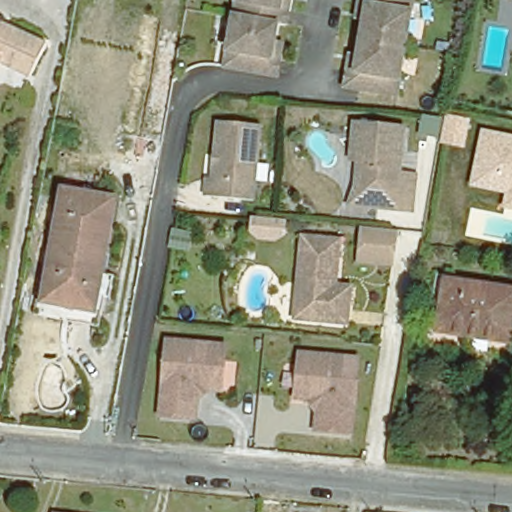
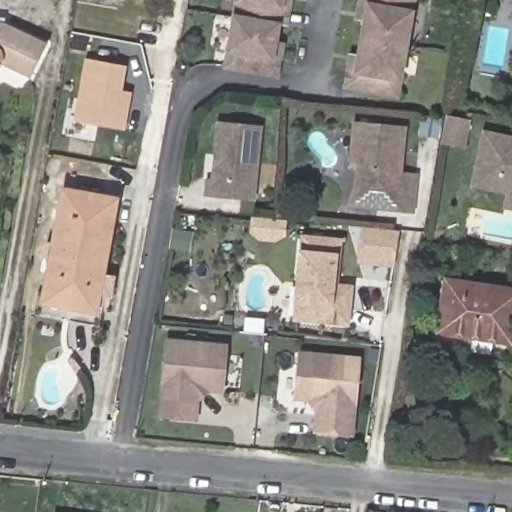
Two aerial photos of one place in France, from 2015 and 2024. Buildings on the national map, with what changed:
unchanged [(287,10),(284,26),(275,25),(233,17),(236,0),(288,0),(287,10)]
unchanged [(362,20),(365,4),(366,0),(418,0),(410,45),(367,38),(370,21),(362,20)]
unchanged [(46,36),(31,69),(29,71),(3,59),(0,60),(0,16),(3,17),(46,36)]
unchanged [(278,59),(275,76),(224,67),(233,17),(275,25),(273,42),(280,43),(278,59)]
unchanged [(402,95),(351,86),(354,70),(357,54),(364,55),(367,38),(410,45),(402,95)]
new [(84,57),(126,65),(122,90),(131,91),(124,130),(72,120),(84,57)]
unchanged [(466,150),(439,146),(439,140),(415,135),(419,115),(444,119),(446,114),(472,119),(466,150)]
unchanged [(203,178),(209,179),(215,120),(259,125),(250,200),(201,195),(203,178)]
unchanged [(355,184),(358,160),(350,159),(354,121),(404,126),(399,172),(415,174),(412,211),(394,209),(346,205),(355,184)]
unchanged [(501,207),(504,194),(466,186),(480,128),(512,134),(512,210),(501,207)]
unchanged [(63,189),(116,198),(95,310),(43,301),(63,189)]
new [(254,219),(284,222),(283,237),(274,241),(259,240),(253,234),(254,219)]
unchanged [(394,268),(354,263),(360,229),(399,233),(394,268)]
unchanged [(353,330),(298,324),(307,241),(345,245),(342,278),(337,278),(335,290),(357,292),(353,330)]
unchanged [(439,331),(447,279),(512,289),(512,332),(511,342),(439,331)]
unchanged [(239,349),(235,385),(209,382),(204,385),(203,407),(158,402),(164,342),(239,349)]
unchanged [(361,361),(354,436),(319,432),(321,406),(318,402),(296,400),(300,355),(361,361)]

